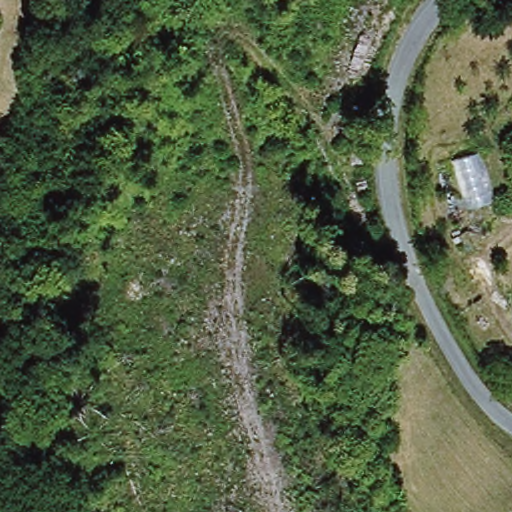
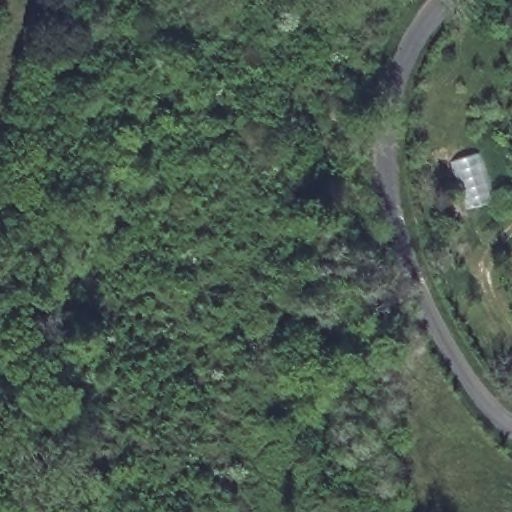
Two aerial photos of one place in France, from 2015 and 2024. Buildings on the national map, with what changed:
unchanged [(493,197),(460,203),(450,161),(481,153),(493,197)]

